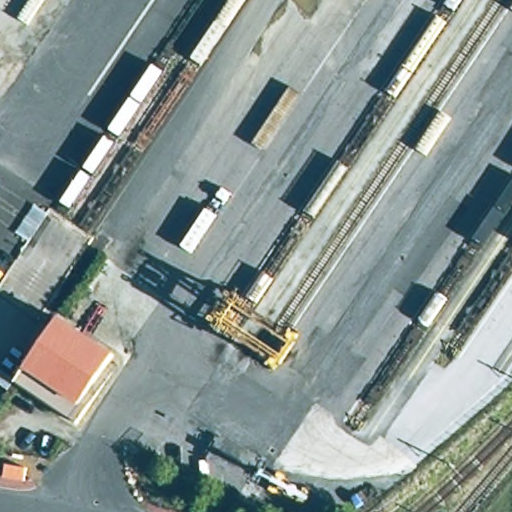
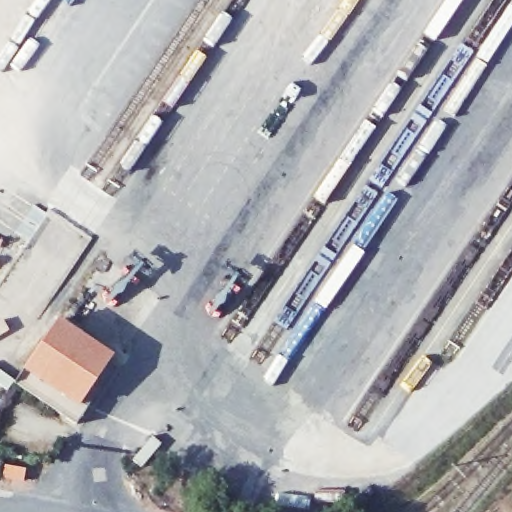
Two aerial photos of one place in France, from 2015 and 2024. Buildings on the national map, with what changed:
unchanged [(95,382),(102,386),(78,423),(16,383),(59,318),(113,355),(95,382)]

